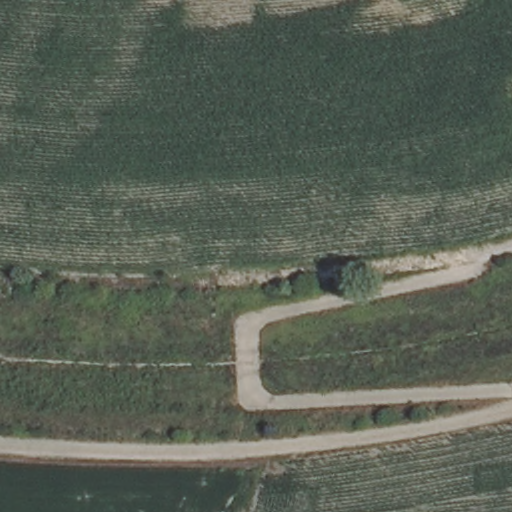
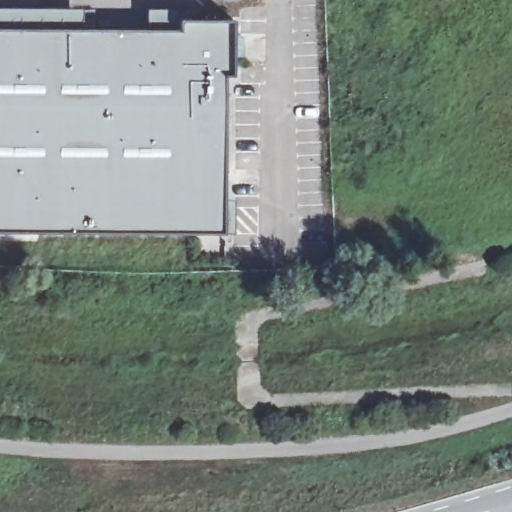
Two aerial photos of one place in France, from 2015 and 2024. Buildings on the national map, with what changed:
new [(232,60),(232,77),(223,76),(222,200),(233,200),(233,234),(222,233),(0,233),(0,9),(81,9),(81,31),(146,31),(146,10),(177,10),(180,22),(232,20),(233,39),(243,39),(243,57),(232,60)]

